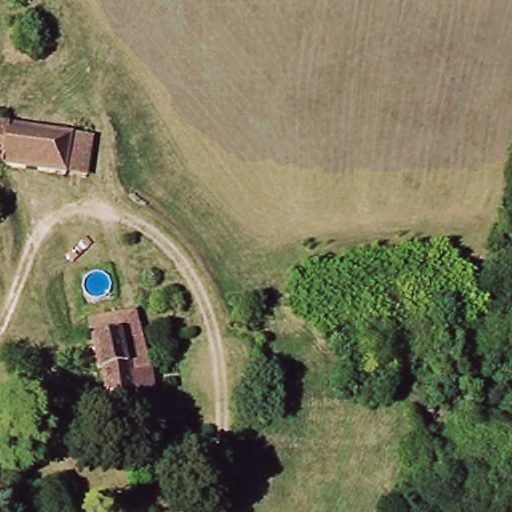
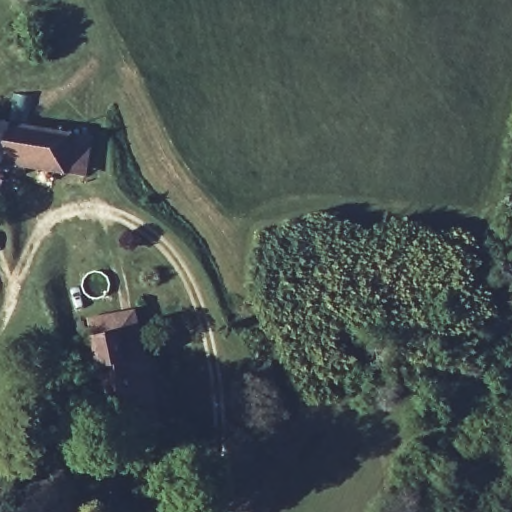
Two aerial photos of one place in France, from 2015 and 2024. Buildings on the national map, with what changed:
unchanged [(0,165),(0,126),(93,145),(87,179),(0,165)]
unchanged [(128,429),(124,412),(112,414),(106,376),(102,375),(97,343),(126,338),(131,366),(137,370),(140,380),(154,377),(165,421),(159,423),(146,427),(128,429)]

